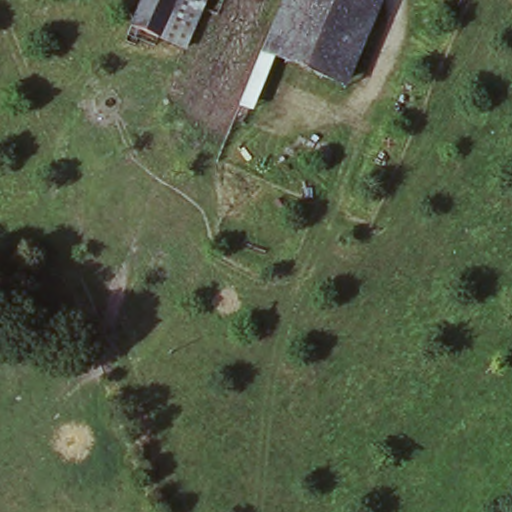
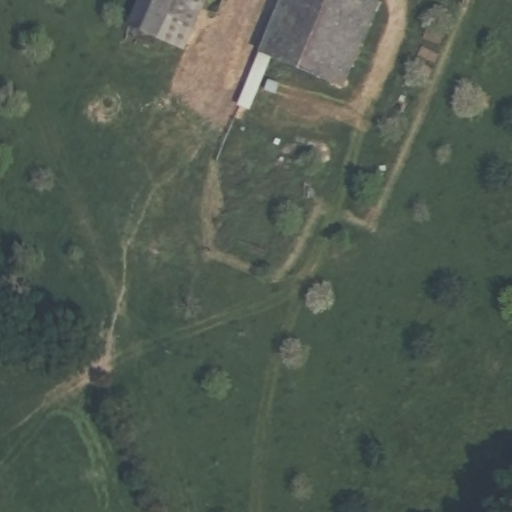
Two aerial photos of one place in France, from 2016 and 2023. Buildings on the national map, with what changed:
unchanged [(190,56),(125,31),(138,0),(211,0),(190,56)]
unchanged [(383,4),(349,93),(264,58),(287,0),(371,0),(383,4)]

